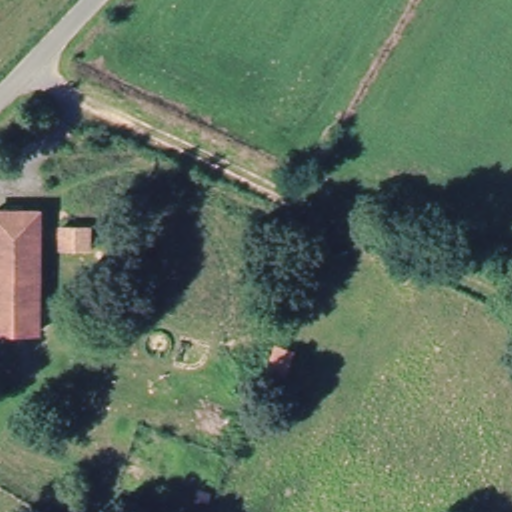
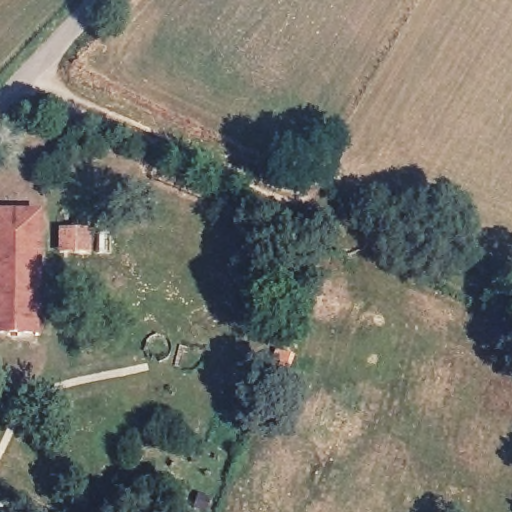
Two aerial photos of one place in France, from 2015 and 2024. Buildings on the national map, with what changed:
unchanged [(0,332),(0,208),(43,207),(41,331),(0,332)]
unchanged [(296,352),(288,383),(266,377),(276,346),(296,352)]

